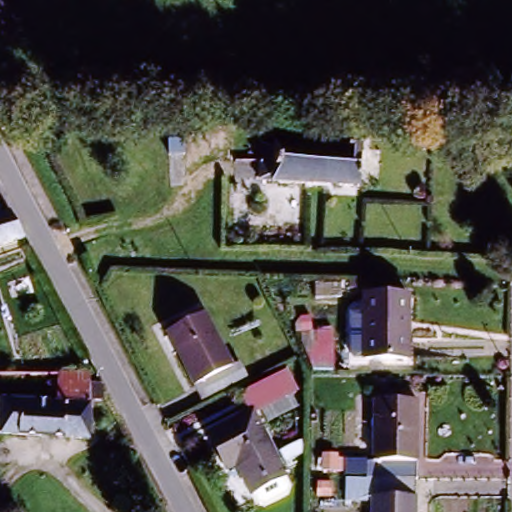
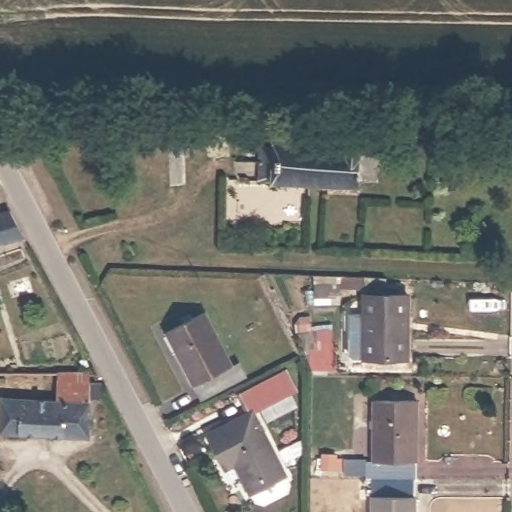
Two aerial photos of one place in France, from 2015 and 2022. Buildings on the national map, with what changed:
unchanged [(191,126),(194,154),(176,156),(174,129),(191,126)]
unchanged [(287,191),(287,185),(260,184),(261,145),(365,146),(365,192),(287,191)]
unchanged [(0,249),(0,206),(5,204),(24,240),(0,249)]
unchanged [(370,296),(412,297),(410,353),(368,352),(370,296)]
unchanged [(174,334),(214,313),(238,362),(199,382),(174,334)]
unchanged [(238,362),(249,357),(257,375),(208,399),(199,382),(238,362)]
unchanged [(286,369),(293,383),(250,407),(250,405),(242,393),(286,369)]
unchanged [(97,388),(95,402),(60,400),(62,372),(97,374),(97,388)]
unchanged [(60,400),(95,402),(94,439),(0,432),(0,396),(60,400)]
unchanged [(378,475),(378,452),(380,400),(419,400),(418,453),(418,476),(418,494),(418,512),(377,512),(377,494),(378,475)]
unchanged [(292,480),(259,498),(244,469),(235,474),(219,443),(260,420),(261,422),(292,480)]

